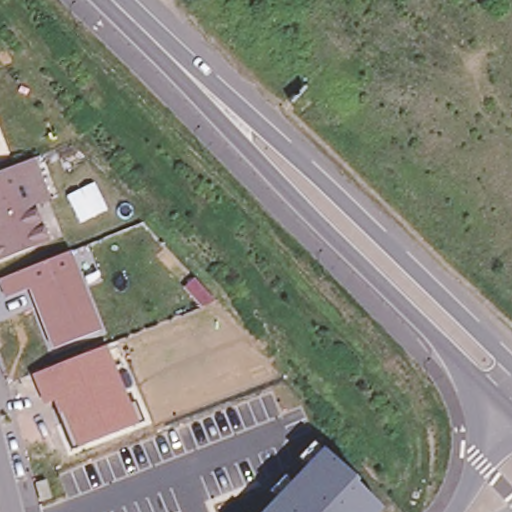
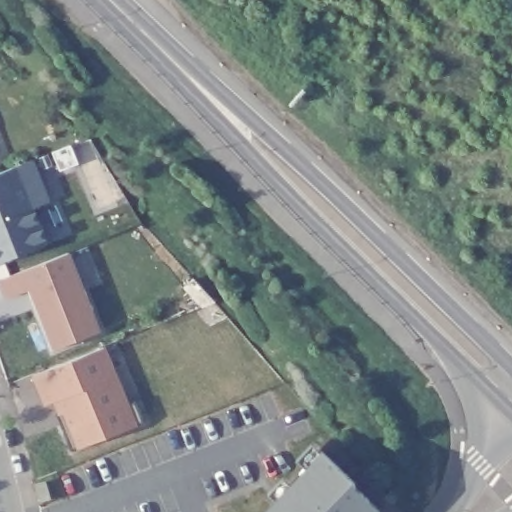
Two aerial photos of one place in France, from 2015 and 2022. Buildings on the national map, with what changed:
unchanged [(34,250),(0,263),(0,174),(33,160),(50,202),(34,209),(41,226),(48,245),(34,250)]
unchanged [(70,249),(100,327),(54,346),(30,285),(7,295),(0,277),(0,276),(70,249)]
unchanged [(130,403),(137,401),(145,421),(75,450),(54,400),(45,403),(34,375),(107,345),(130,403)]
unchanged [(383,510),(381,512),(257,512),(321,447),(383,510)]
unchanged [(52,500),(40,503),(39,495),(36,485),(47,482),(52,500)]

